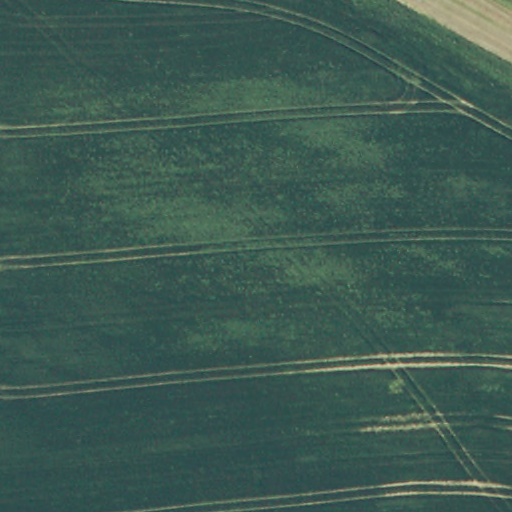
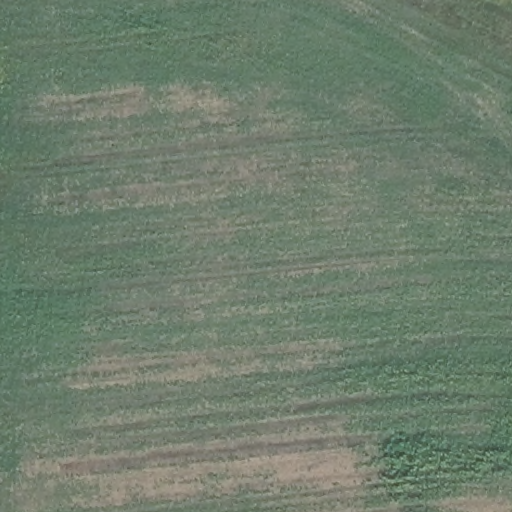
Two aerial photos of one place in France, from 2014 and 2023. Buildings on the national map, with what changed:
[]

